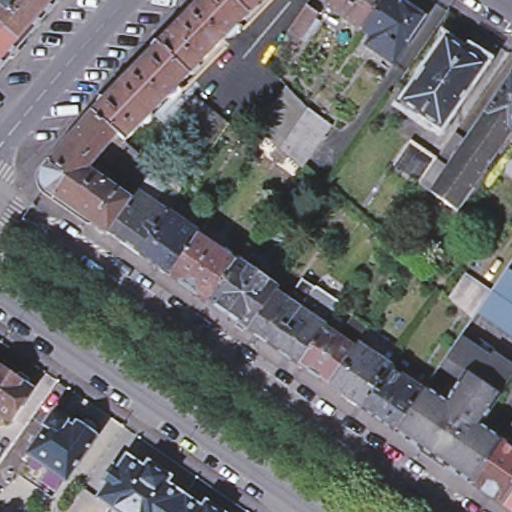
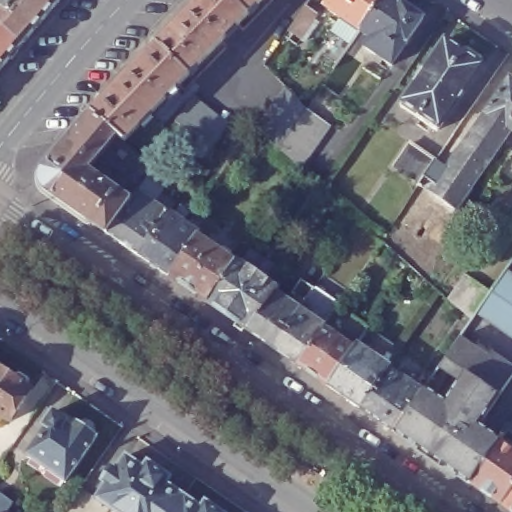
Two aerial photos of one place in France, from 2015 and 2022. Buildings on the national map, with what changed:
unchanged [(0,24),(0,0),(53,0),(58,4),(23,44),(0,24)]
unchanged [(53,0),(61,0),(58,4),(53,0)]
unchanged [(116,136),(91,115),(158,47),(203,0),(261,0),(123,143),(116,136)]
unchanged [(329,13),(338,0),(391,0),(366,37),(329,13)]
unchanged [(407,8),(409,9),(410,8),(412,8),(428,19),(429,22),(428,24),(429,24),(398,71),(371,53),(376,44),(366,37),(391,0),(394,0),(407,9),(407,8)]
unchanged [(324,19),(307,45),(294,36),(311,10),(324,19)]
unchanged [(0,71),(0,24),(23,44),(0,71)]
unchanged [(439,131),(419,118),(422,114),(404,101),(446,41),(463,53),(464,51),(469,50),(483,60),(484,65),(439,131)]
unchanged [(266,138),(258,131),(288,88),(308,109),(332,127),(323,141),(314,154),(303,170),(300,168),(279,150),(266,138)]
unchanged [(498,111),(496,109),(504,99),(504,100),(512,89),(512,132),(492,118),(498,111)]
unchanged [(176,123),(193,98),(229,126),(211,152),(197,141),(182,128),(176,123)]
unchanged [(99,156),(88,170),(131,202),(108,235),(44,190),(40,182),(41,173),(91,115),(116,136),(99,156)]
unchanged [(442,166),(459,140),(472,148),(492,118),(512,132),(512,143),(477,195),(479,196),(464,219),(424,191),(426,189),(401,171),(417,149),(442,166)]
unchanged [(108,235),(131,202),(138,192),(155,204),(168,214),(139,256),(108,235)]
unchanged [(139,256),(168,214),(199,236),(198,238),(171,278),(139,256)]
unchanged [(198,238),(211,246),(213,242),(233,255),(229,260),(235,263),(208,303),(171,278),(198,238)]
unchanged [(235,263),(238,259),(279,288),(276,291),(249,332),(208,303),(235,263)]
unchanged [(512,335),(477,310),(473,315),(449,295),(467,271),(492,288),(507,266),(512,269),(512,335)]
unchanged [(276,291),(291,301),(296,294),(306,301),(274,349),(249,332),(276,291)]
unchanged [(306,301),(316,308),(311,315),(326,325),(324,328),(298,366),(274,349),(306,301)]
unchanged [(363,410),(329,387),(298,366),(324,328),(340,338),(354,317),(370,327),(358,345),(391,368),(363,410)]
unchanged [(459,382),(439,368),(444,360),(460,338),(512,373),(512,379),(482,422),(478,420),(475,424),(501,441),(471,485),(395,433),(423,391),(424,389),(444,404),(459,382)]
unchanged [(8,374),(14,370),(24,377),(24,385),(28,387),(6,418),(0,414),(0,368),(8,374)]
unchanged [(391,368),(423,391),(395,433),(363,410),(391,368)]
unchanged [(46,434),(43,432),(54,417),(69,427),(68,430),(73,434),(78,428),(81,430),(86,424),(89,423),(93,423),(96,425),(99,429),(98,433),(95,440),(98,442),(66,488),(28,461),(46,434)]
unchanged [(512,424),(512,434),(507,431),(512,424)]
unchanged [(512,449),(512,491),(502,506),(471,485),(501,441),(512,449)]
unchanged [(173,512),(103,512),(93,506),(103,490),(98,486),(107,474),(112,477),(123,461),(139,473),(144,467),(167,483),(163,489),(181,501),(173,512)]
unchanged [(512,491),(512,512),(511,512),(502,506),(512,491)]
unchanged [(181,501),(197,512),(173,512),(181,501)]
unchanged [(209,512),(198,512),(201,507),(209,512)]

